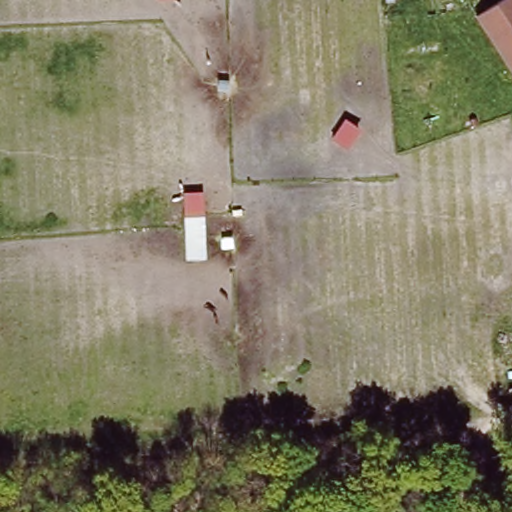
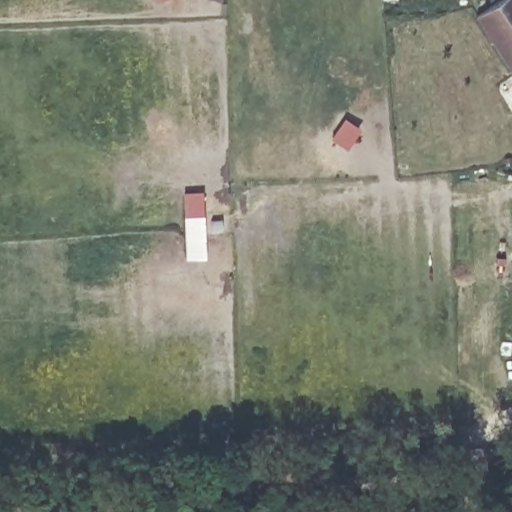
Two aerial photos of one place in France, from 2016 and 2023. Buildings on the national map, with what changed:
unchanged [(512,0),(512,70),(475,14),(495,0),(512,0)]
unchanged [(185,262),(182,193),(203,191),(205,259),(185,262)]

